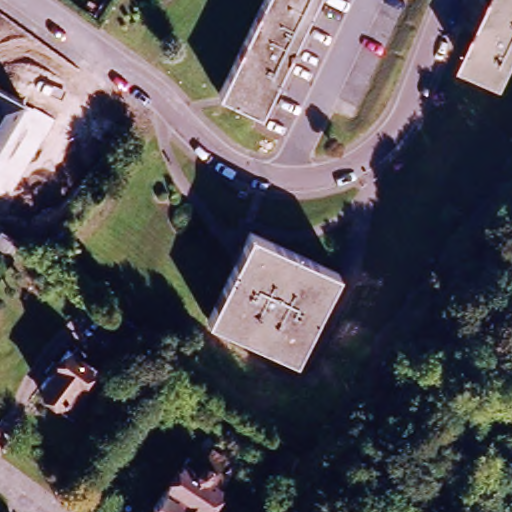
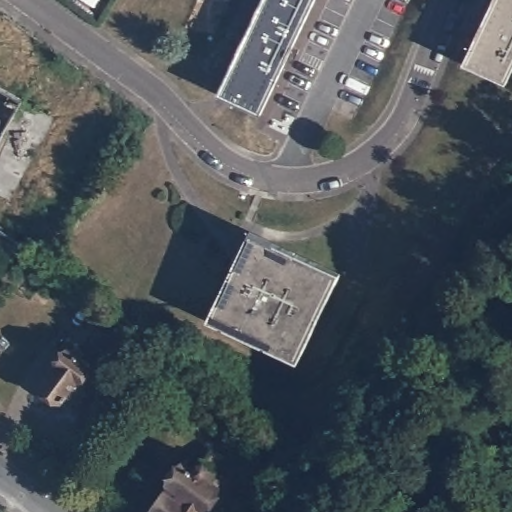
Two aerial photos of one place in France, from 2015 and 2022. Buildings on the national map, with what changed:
unchanged [(286,60),(272,89),(259,115),(216,95),(251,22),(261,0),(314,0),(299,32),(293,45),(301,49),(294,64),(286,60)]
unchanged [(454,79),(492,0),(512,0),(512,70),(498,99),(454,79)]
unchanged [(124,105),(129,108),(119,122),(101,109),(83,96),(94,83),(104,90),(111,95),(121,102),(124,105)]
unchanged [(3,156),(0,154),(0,89),(23,105),(14,116),(25,125),(16,136),(11,144),(3,156)]
unchanged [(254,230),(343,276),(311,335),(296,363),(209,318),(254,230)]
unchanged [(21,250),(11,263),(0,254),(0,235),(21,250)]
unchanged [(126,320),(153,340),(133,366),(98,339),(118,312),(126,320)]
unchanged [(69,343),(73,346),(78,341),(84,347),(80,352),(102,367),(97,375),(86,367),(75,381),(85,389),(75,402),(65,395),(62,398),(59,396),(55,400),(40,390),(44,384),(41,381),(69,343)]
unchanged [(266,457),(284,435),(293,441),(297,444),(303,448),(286,471),(266,457)]
unchanged [(196,476),(201,467),(204,468),(211,458),(226,468),(219,479),(226,485),(208,512),(182,512),(166,502),(186,471),(196,476)]

